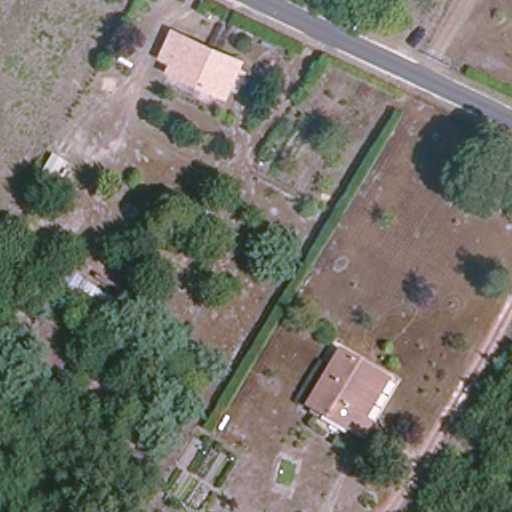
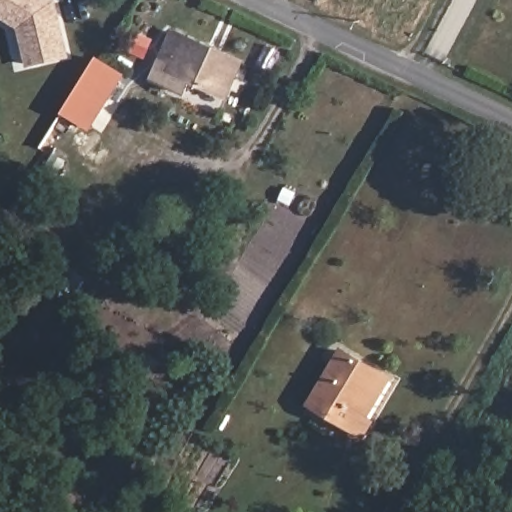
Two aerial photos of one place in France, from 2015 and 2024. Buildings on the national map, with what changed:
new [(17,30),(0,19),(0,0),(56,0),(57,1),(70,59),(26,69),(17,30)]
unchanged [(246,62),(228,102),(176,79),(181,66),(166,59),(176,32),(246,62)]
new [(86,134),(61,115),(95,57),(124,76),(86,134)]
unchanged [(55,184),(41,175),(55,154),(68,161),(55,184)]
unchanged [(138,331),(61,290),(72,269),(147,316),(138,331)]
unchanged [(351,409),(360,416),(352,433),(310,408),(344,350),(374,367),(351,409)]
unchanged [(396,379),(368,421),(360,416),(351,409),(374,367),(396,379)]

